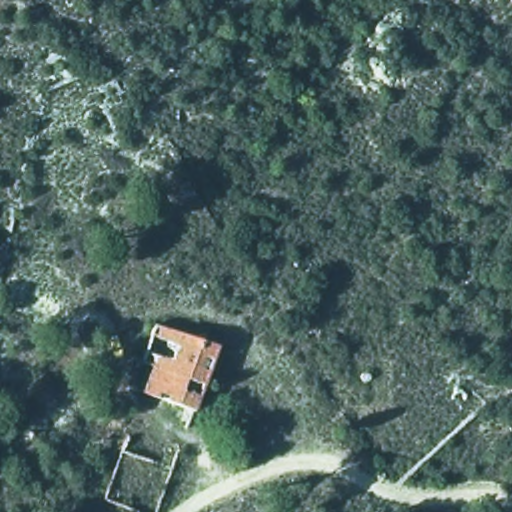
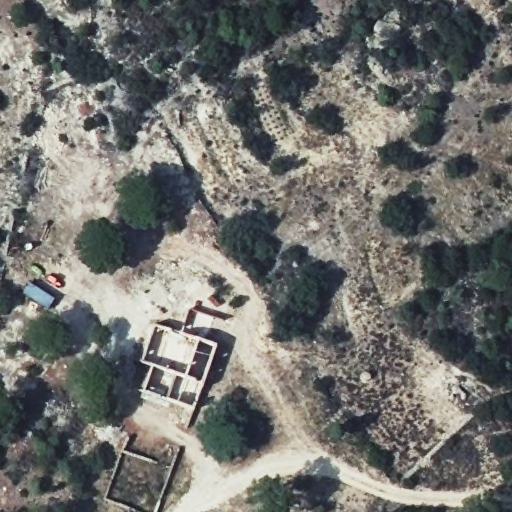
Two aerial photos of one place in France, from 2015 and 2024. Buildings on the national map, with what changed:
unchanged [(218,347),(193,410),(134,387),(144,364),(132,359),(151,318),(218,347)]

